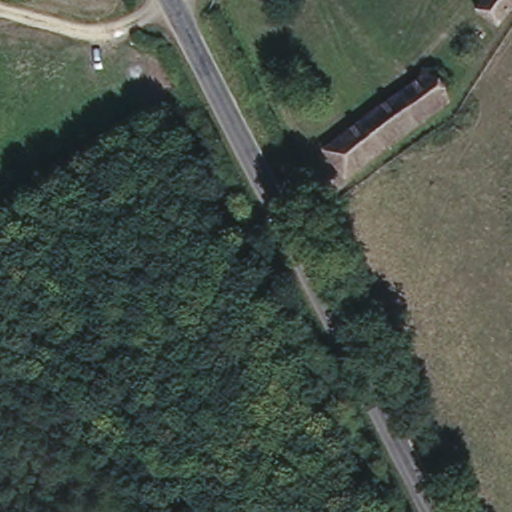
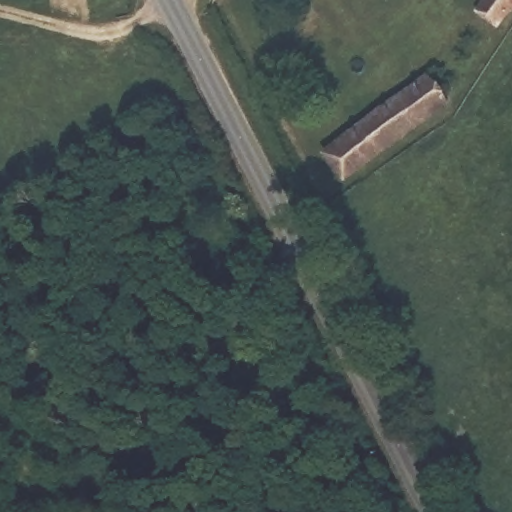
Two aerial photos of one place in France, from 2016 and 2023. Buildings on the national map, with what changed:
unchanged [(484,0),(512,0),(512,7),(487,39),(467,22),(484,0)]
unchanged [(431,72),(453,99),(347,181),(324,153),(431,72)]

